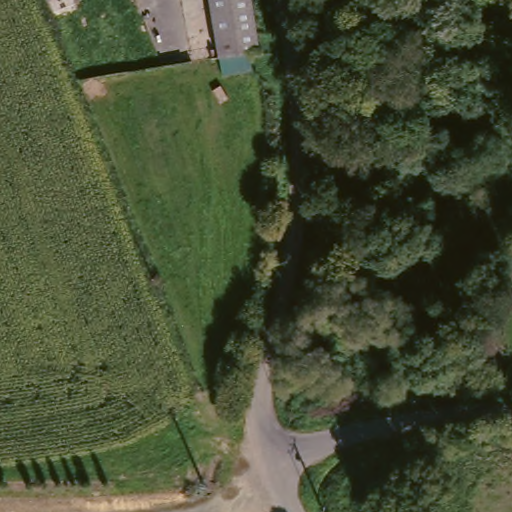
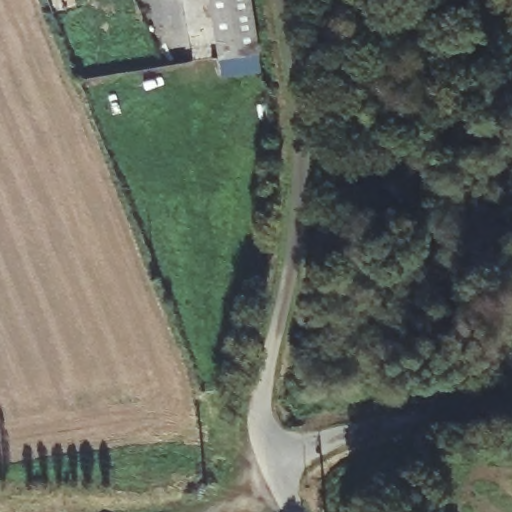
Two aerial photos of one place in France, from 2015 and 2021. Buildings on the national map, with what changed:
unchanged [(254,35),(257,54),(219,60),(218,49),(210,0),(249,0),(254,35)]

